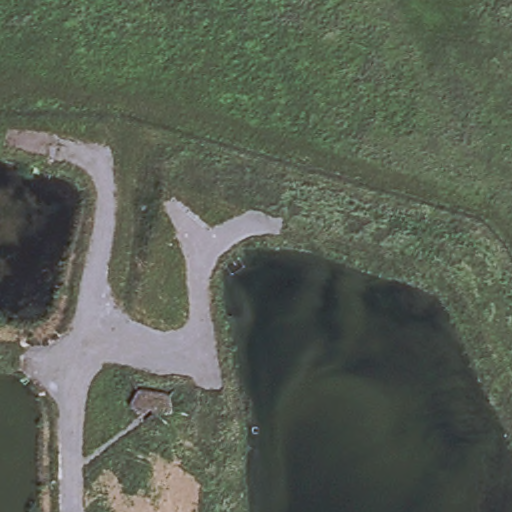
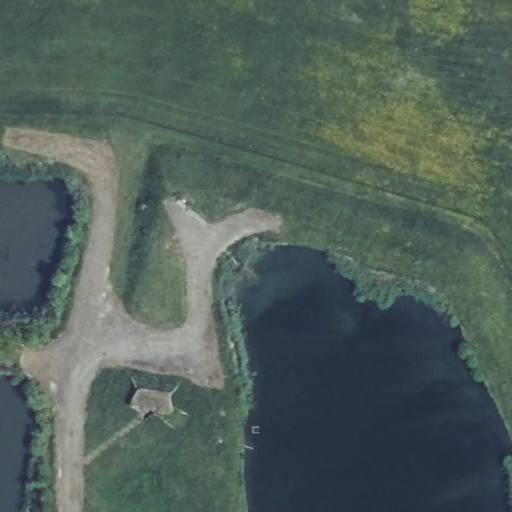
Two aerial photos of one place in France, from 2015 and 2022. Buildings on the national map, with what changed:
unchanged [(136,390),(173,393),(170,415),(138,412),(136,390)]

